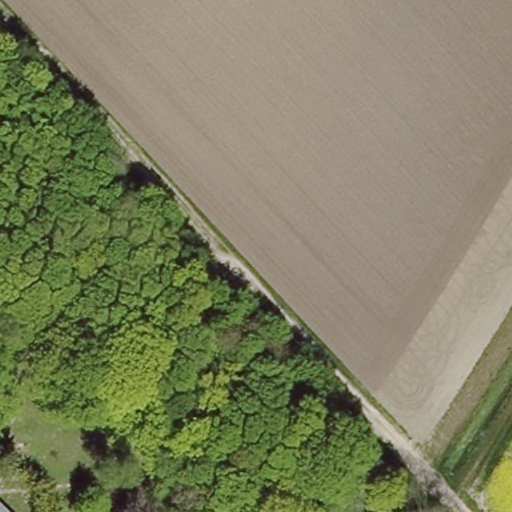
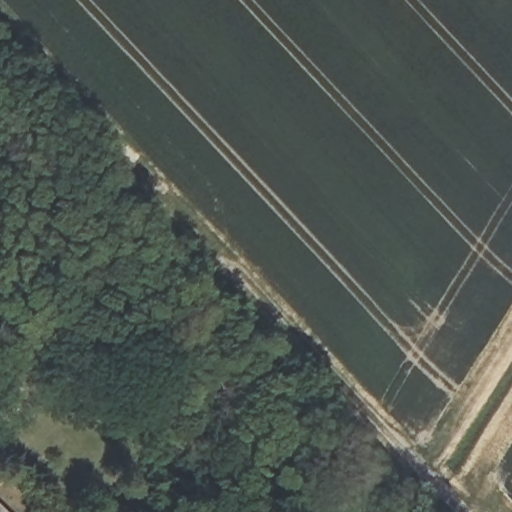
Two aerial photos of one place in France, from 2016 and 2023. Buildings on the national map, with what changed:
unchanged [(241,502),(228,512),(213,512),(194,489),(218,467),(241,502)]
unchanged [(13,512),(0,512),(0,497),(13,512)]

